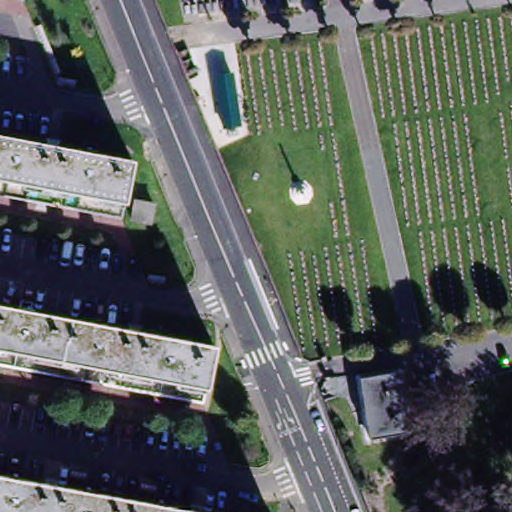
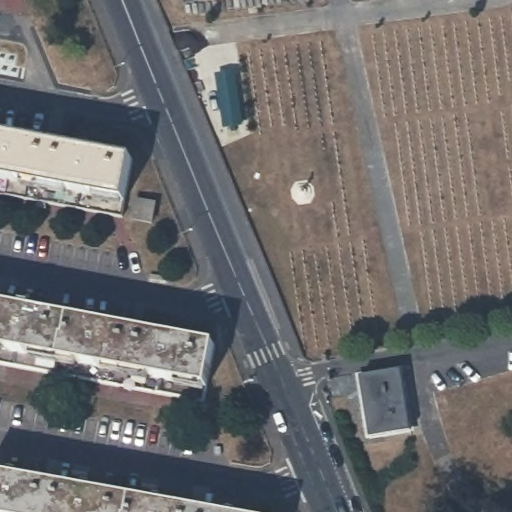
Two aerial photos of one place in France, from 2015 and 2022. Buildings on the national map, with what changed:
unchanged [(203,69),(207,91),(197,93),(194,70),(203,69)]
unchanged [(136,154),(128,197),(126,212),(0,188),(0,128),(136,154)]
unchanged [(156,202),(153,223),(131,219),(134,198),(156,202)]
unchanged [(24,302),(36,304),(220,337),(212,381),(209,395),(0,357),(0,297),(24,302)]
unchanged [(399,372),(409,434),(367,440),(358,378),(399,372)]
unchanged [(193,512),(0,512),(0,478),(193,512)]

